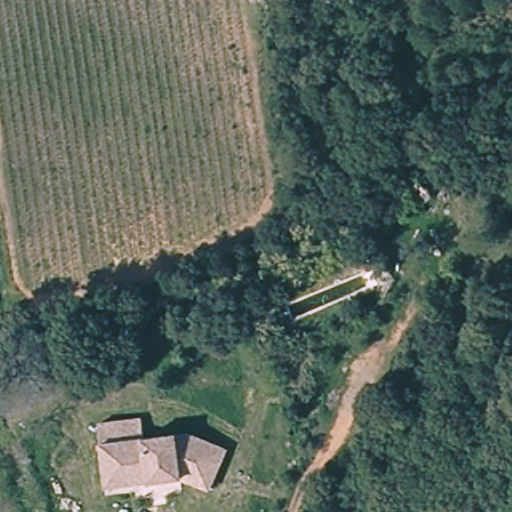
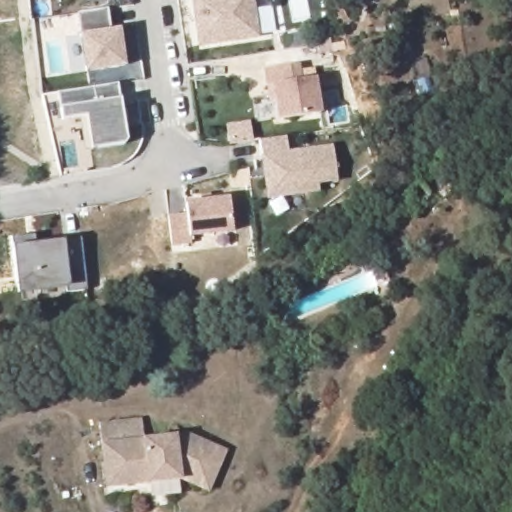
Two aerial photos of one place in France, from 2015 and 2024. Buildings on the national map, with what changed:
new [(259,34),(198,43),(192,0),(253,0),(259,34)]
new [(108,7),(112,28),(120,27),(125,64),(87,70),(77,11),(108,7)]
new [(267,81),(265,65),(298,59),(301,75),(315,73),(320,108),(279,115),(275,96),(270,97),(267,81)]
new [(119,82),(120,97),(128,142),(85,151),(80,118),(62,122),(60,106),(57,92),(119,82)]
new [(285,135),(288,151),(333,144),(340,180),(320,184),(320,190),(267,200),(260,159),(258,139),(285,135)]
unchanged [(406,214),(393,197),(415,179),(428,193),(406,214)]
new [(186,215),(185,201),(228,196),(233,230),(193,234),(192,243),(172,246),(167,215),(186,215)]
new [(38,242),(65,239),(65,241),(82,237),(88,289),(67,292),(66,286),(17,292),(12,245),(10,237),(37,234),(38,242)]
unchanged [(163,471),(164,485),(109,491),(101,421),(152,414),(155,436),(190,432),(230,449),(215,486),(180,471),(163,471)]

